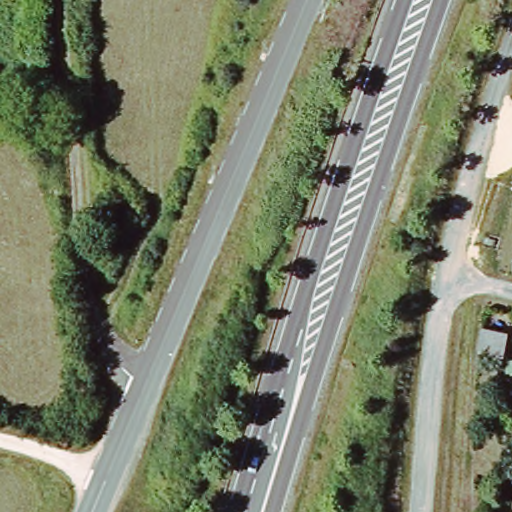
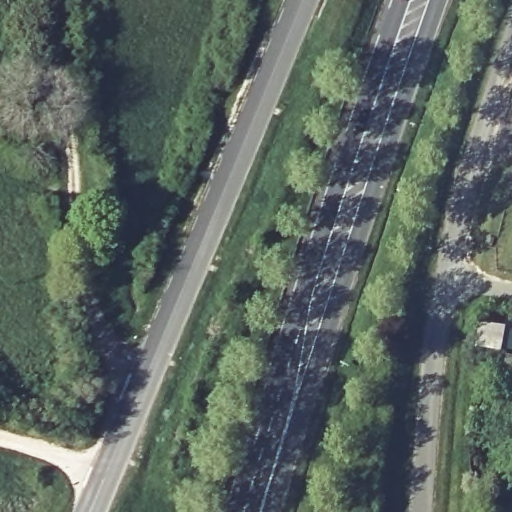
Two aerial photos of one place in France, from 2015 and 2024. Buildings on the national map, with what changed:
unchanged [(497,360),(473,354),(478,330),(502,335),(497,360)]

